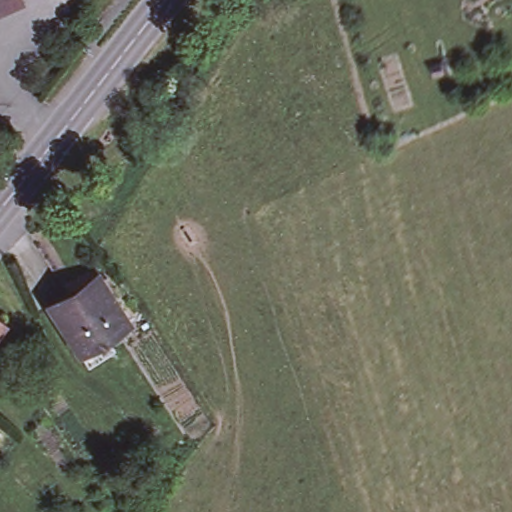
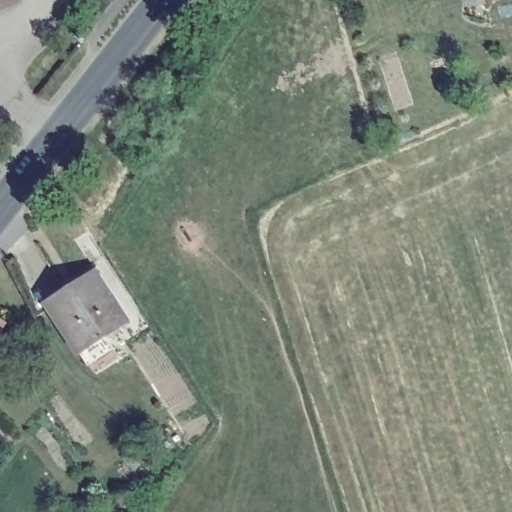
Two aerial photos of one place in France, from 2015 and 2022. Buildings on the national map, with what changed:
unchanged [(0,10),(0,0),(26,0),(0,10)]
unchanged [(83,364),(76,350),(48,304),(67,293),(61,283),(92,264),(98,275),(125,321),(101,335),(109,350),(83,364)]
unchanged [(2,322),(0,325),(0,320),(2,322)]

